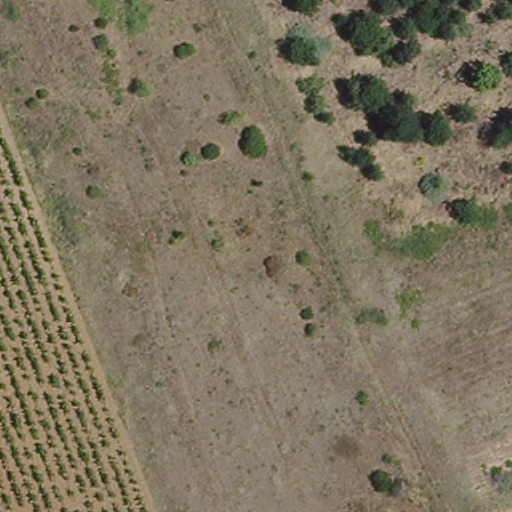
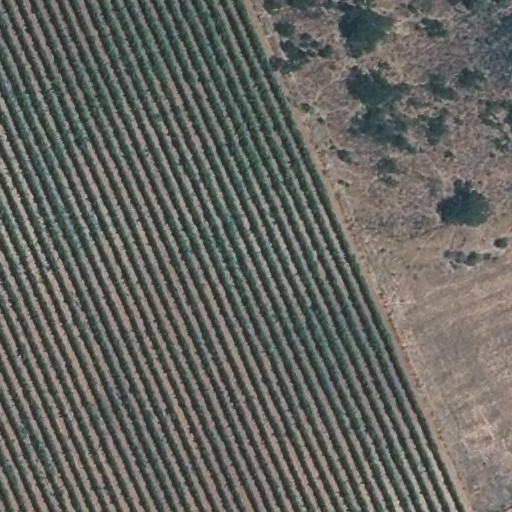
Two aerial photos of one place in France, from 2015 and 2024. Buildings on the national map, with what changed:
[]

